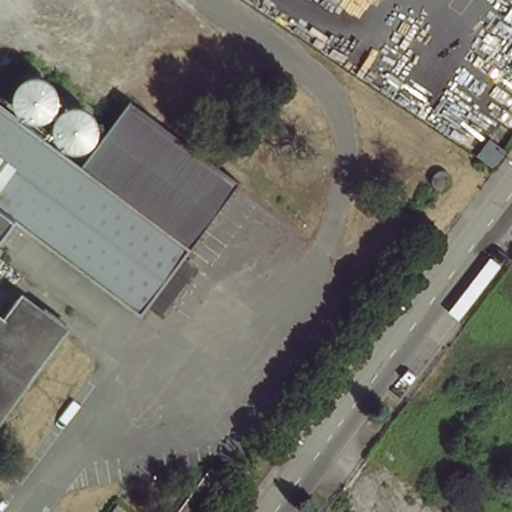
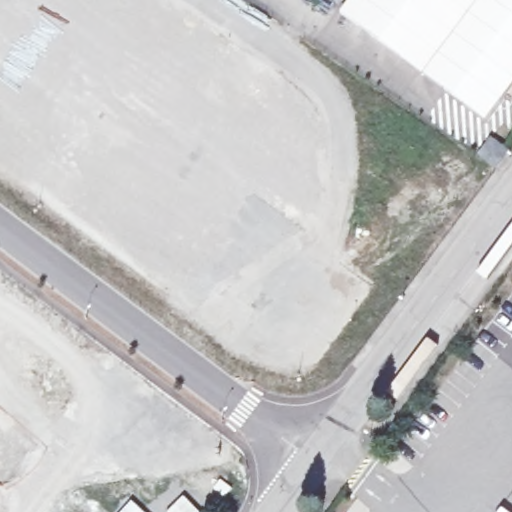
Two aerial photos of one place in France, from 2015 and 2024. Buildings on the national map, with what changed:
unchanged [(331,13),(314,0),(341,0),(331,13)]
new [(512,84),(484,122),(339,12),(348,0),(512,0),(512,84)]
demolished [(85,167),(131,104),(241,184),(188,260),(145,317),(21,229),(0,258),(0,105),(85,167)]
unchanged [(469,162),(484,145),(501,158),(488,176),(469,162)]
unchanged [(429,186),(429,182),(430,179),(433,176),(436,175),(439,175),(443,176),(445,179),(447,182),(447,186),(445,189),(443,191),(439,192),(436,192),(433,191),(430,189),(429,186)]
demolished [(7,320),(23,298),(66,330),(0,421),(0,315),(7,320)]
demolished [(128,512),(125,512),(126,511),(128,512)]

